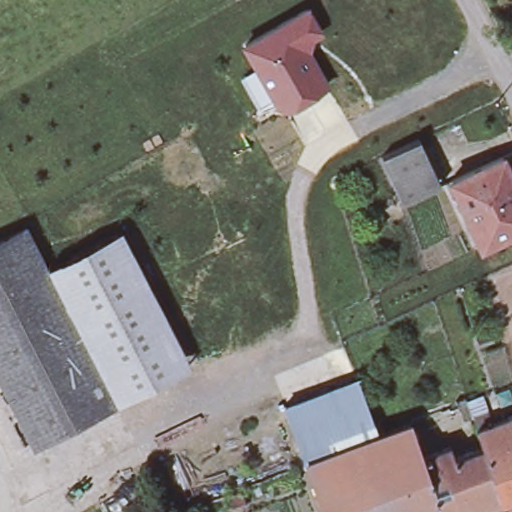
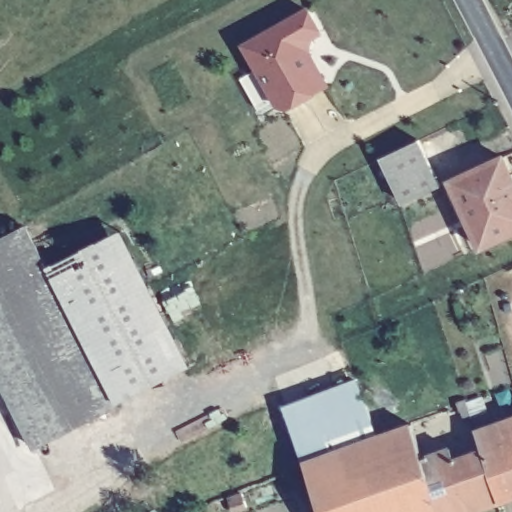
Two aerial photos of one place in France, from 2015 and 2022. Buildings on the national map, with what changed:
unchanged [(287,116),(276,109),(242,46),(308,8),(324,38),(312,44),(312,55),(330,88),(287,116)]
unchanged [(396,200),(387,182),(382,170),(375,155),(411,138),(416,148),(424,164),(433,182),(396,200)]
unchanged [(494,154),(512,194),(512,227),(472,244),(441,178),(494,154)]
unchanged [(0,241),(25,228),(117,407),(46,443),(35,449),(17,415),(0,381),(0,241)]
unchanged [(122,233),(190,366),(175,374),(107,240),(122,233)]
unchanged [(120,402),(51,269),(107,240),(175,374),(120,402)]
unchanged [(301,462),(282,407),(353,381),(373,436),(363,439),(301,462)]
unchanged [(463,398),(470,418),(462,421),(458,412),(455,413),(452,402),(463,398)]
unchanged [(512,415),(512,471),(495,421),(512,415)]
unchanged [(474,429),(495,421),(512,471),(512,496),(500,500),(481,448),(474,429)]
unchanged [(373,436),(408,423),(420,458),(438,512),(388,512),(363,439),(373,436)]
unchanged [(363,439),(388,512),(319,512),(301,462),(363,439)]
unchanged [(447,448),(451,459),(481,448),(500,500),(466,512),(438,512),(420,458),(447,448)]

